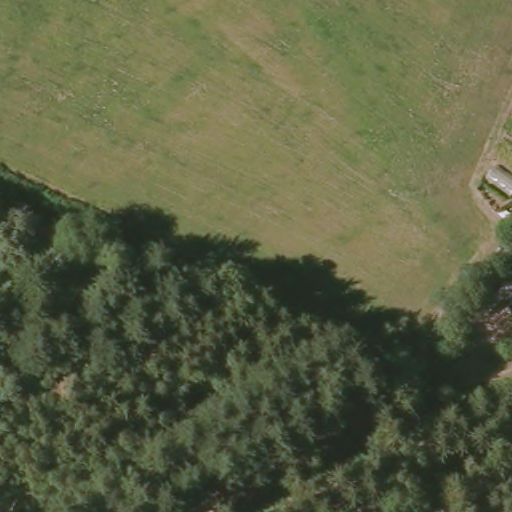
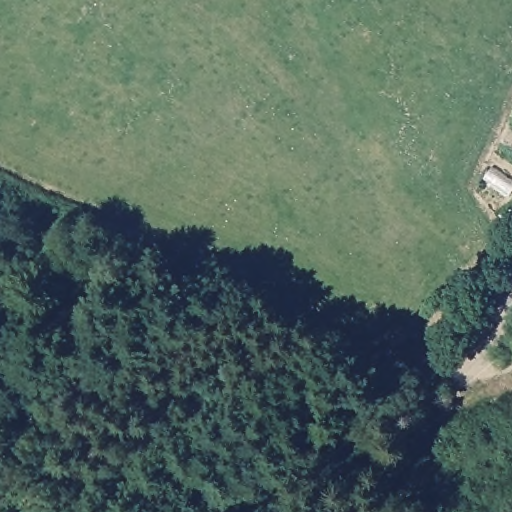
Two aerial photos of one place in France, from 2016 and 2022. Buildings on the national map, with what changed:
unchanged [(488,271),(501,282),(512,275),(512,312),(511,312),(500,302),(481,317),(464,297),(488,271)]

